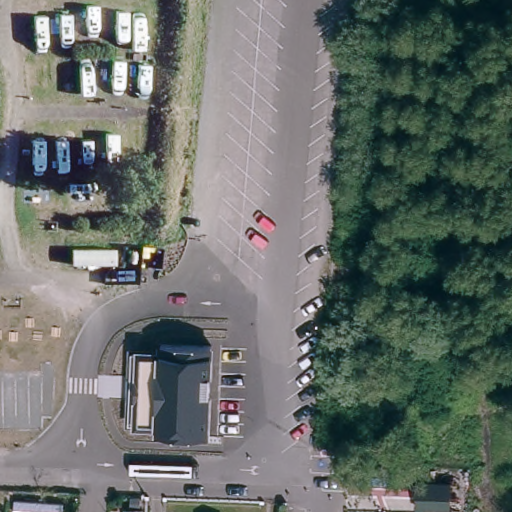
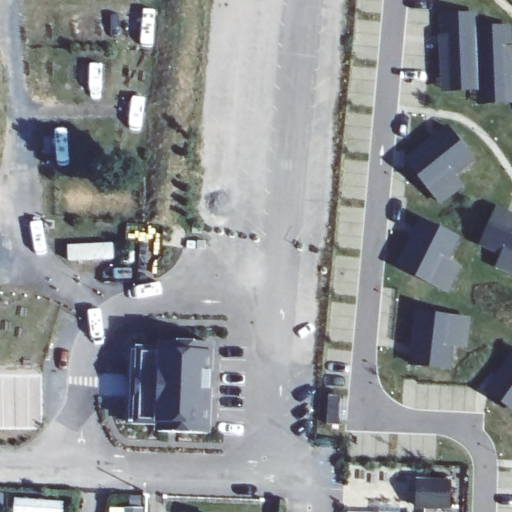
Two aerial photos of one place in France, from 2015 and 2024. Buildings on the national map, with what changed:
demolished [(452,0),(461,0),(456,4),(452,0)]
new [(485,19),(486,33),(512,32),(512,92),(487,92),(487,79),(453,80),(452,20),(485,19)]
new [(487,79),(487,92),(512,92),(512,107),(487,108),(487,94),(453,95),(453,80),(487,79)]
new [(480,164),(442,193),(417,161),(455,131),(480,164)]
new [(470,190),(448,209),(412,164),(417,160),(442,193),(461,179),(470,190)]
new [(512,218),(512,260),(489,250),(504,215),(512,218)]
new [(465,242),(443,285),(407,267),(428,225),(465,242)]
new [(512,260),(512,277),(504,273),(510,259),(512,260)]
new [(467,271),(455,297),(404,271),(406,266),(443,285),(454,265),(467,271)]
new [(418,367),(424,321),(422,321),(423,315),(477,322),(473,350),(458,349),(455,372),(418,367)]
unchanged [(159,345),(160,340),(215,342),(211,435),(157,433),(157,426),(126,426),(128,344),(159,345)]
new [(512,369),(512,408),(493,395),(512,369)]
unchanged [(412,512),(349,512),(350,508),(412,511),(412,512)]

